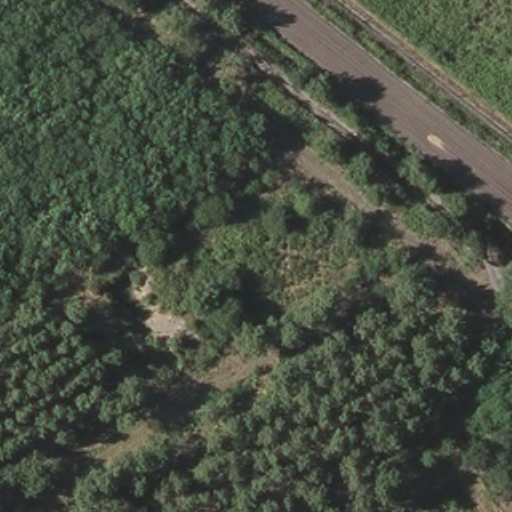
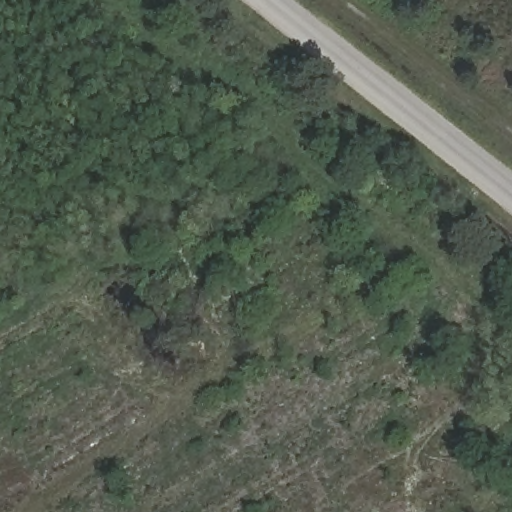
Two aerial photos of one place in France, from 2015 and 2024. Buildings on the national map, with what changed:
unchanged [(359,175),(369,163),(397,187),(386,199),(359,175)]

